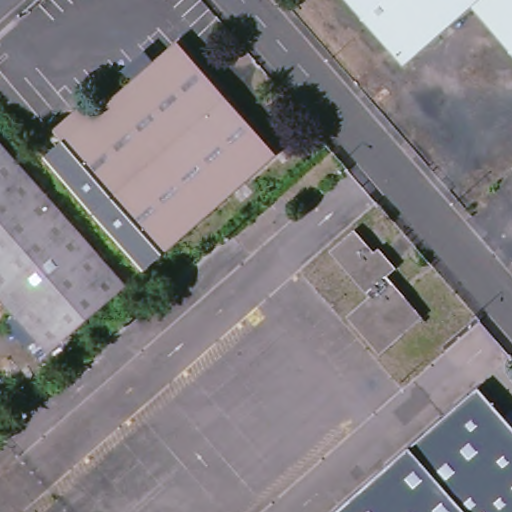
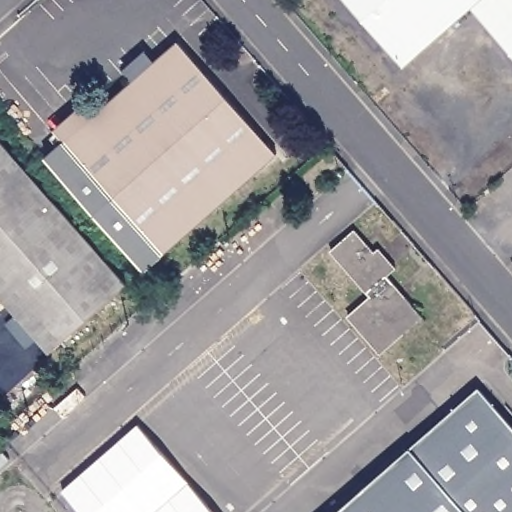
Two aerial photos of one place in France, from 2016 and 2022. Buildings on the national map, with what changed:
unchanged [(473,8),(405,66),(348,0),(512,0),(512,52),(473,8)]
unchanged [(276,153),(162,253),(66,142),(55,130),(82,105),(93,118),(179,43),(276,153)]
unchanged [(0,144),(125,286),(50,352),(0,295),(0,144)]
unchanged [(348,318),(371,298),(332,253),(355,232),(375,255),(380,250),(396,269),(387,277),(422,318),(381,354),(348,318)]
unchanged [(512,419),(512,512),(344,512),(485,389),(512,419)]
new [(190,484),(157,512),(83,512),(65,492),(139,426),(190,484)]
new [(157,512),(190,484),(214,512),(157,512)]

